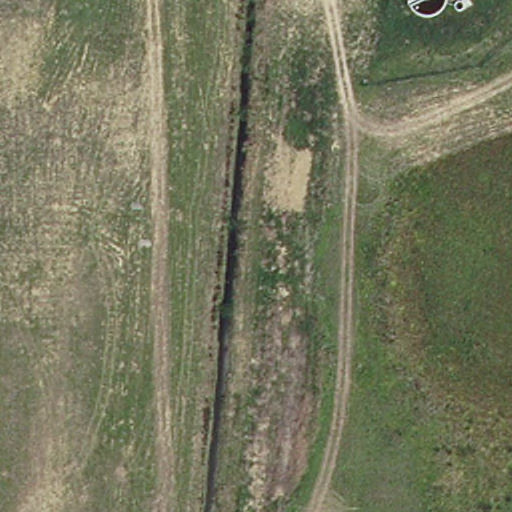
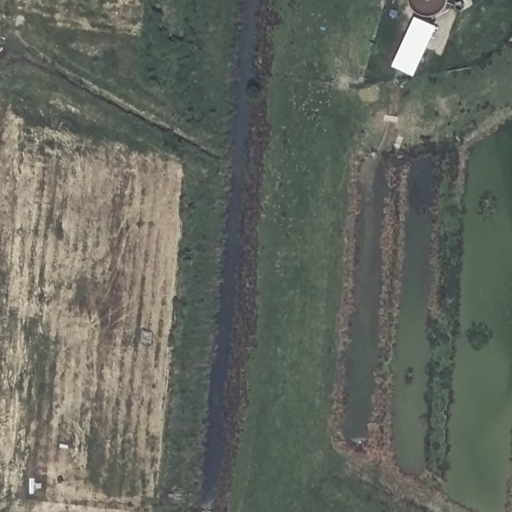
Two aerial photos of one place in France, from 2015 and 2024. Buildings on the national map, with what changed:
new [(415,76),(393,66),(416,16),(437,26),(415,76)]

